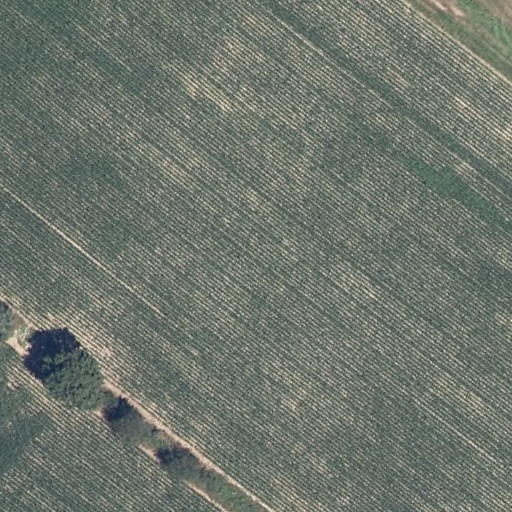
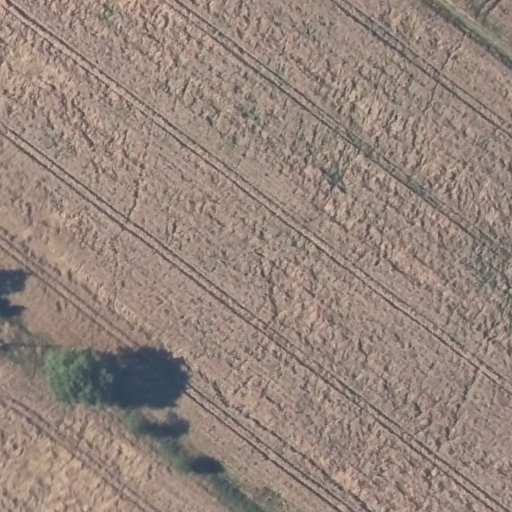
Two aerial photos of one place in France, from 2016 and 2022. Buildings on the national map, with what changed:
[]

